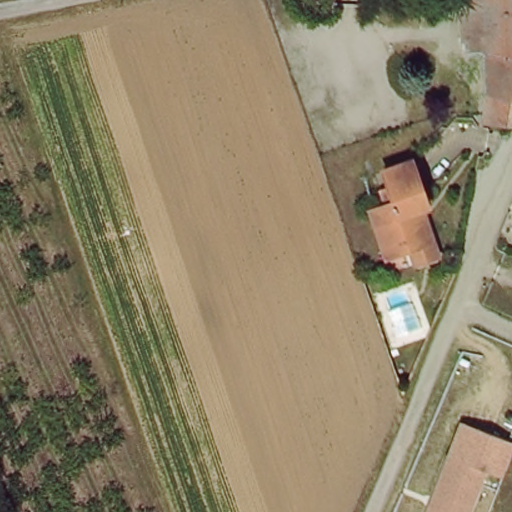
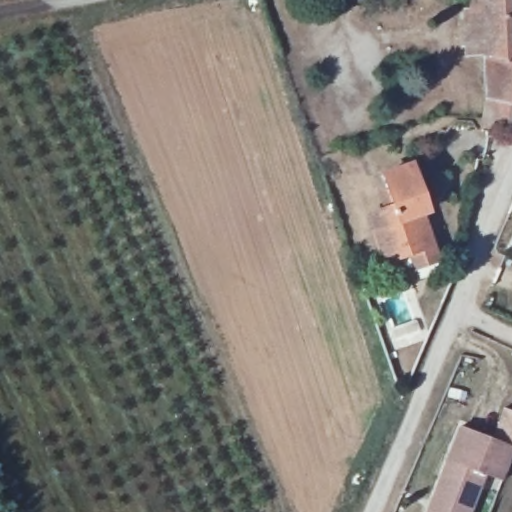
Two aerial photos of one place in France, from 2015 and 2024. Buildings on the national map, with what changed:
unchanged [(483,52),(465,54),(464,44),(462,44),(462,21),(465,21),(465,11),(472,10),(471,0),(512,0),(512,130),(484,128),(485,118),(487,102),(483,52)]
unchanged [(415,252),(400,257),(390,260),(385,242),(375,214),(390,208),(385,194),(393,191),(387,174),(417,164),(432,210),(424,213),(429,225),(430,225),(437,245),(442,259),(420,266),(415,252)]
unchanged [(512,445),(512,462),(503,483),(485,477),(472,512),(426,512),(459,425),(512,445)]

